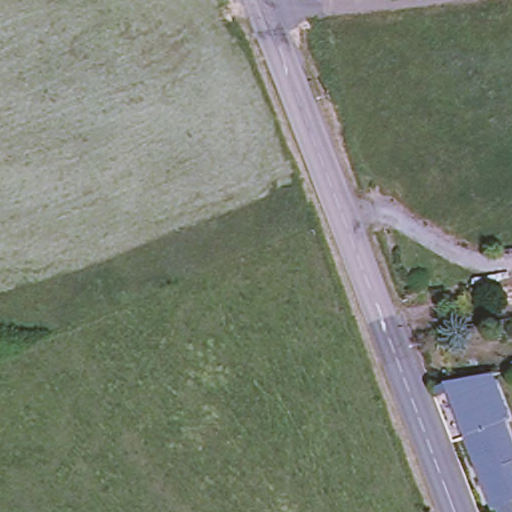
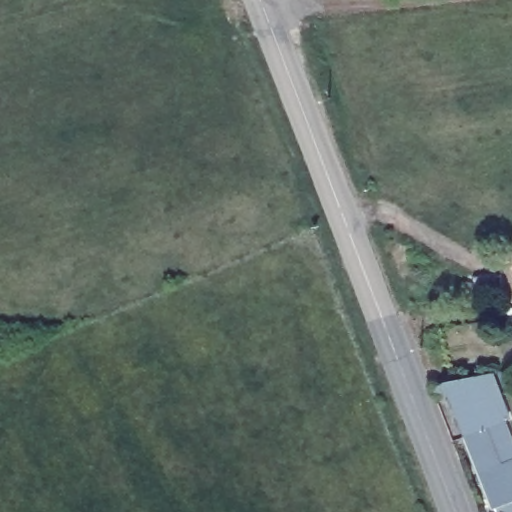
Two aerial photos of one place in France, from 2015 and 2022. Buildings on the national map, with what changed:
unchanged [(461,433),(440,382),(494,371),(510,415),(501,418),(512,447),(512,502),(511,502),(491,510),(470,457),(461,433)]

